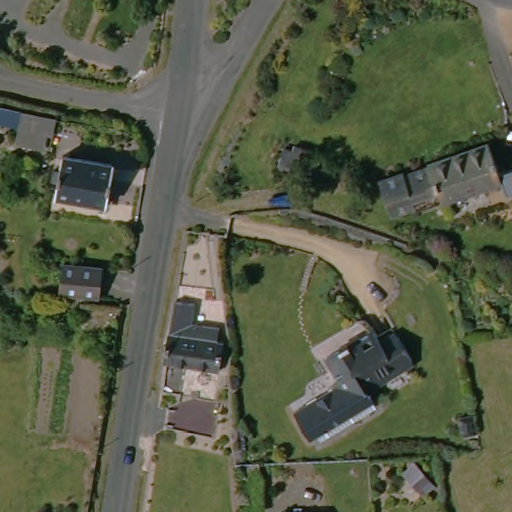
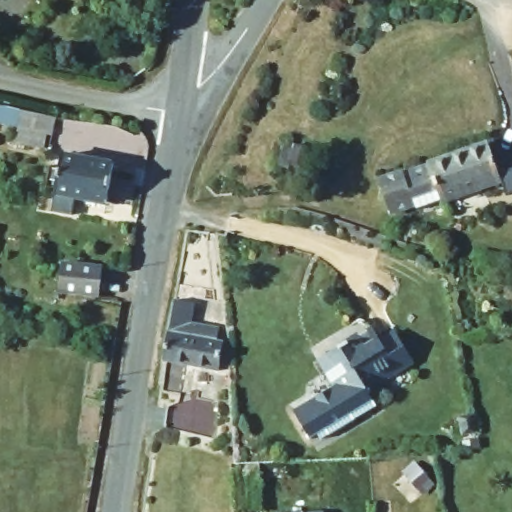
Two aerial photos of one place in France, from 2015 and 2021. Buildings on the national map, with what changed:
unchanged [(56,124),(76,130),(72,149),(47,145),(12,139),(17,110),(51,116),(57,117),(56,124)]
unchanged [(499,179),(450,198),(449,196),(438,159),(483,143),(499,179)]
unchanged [(109,166),(97,208),(59,198),(70,155),(109,166)]
unchanged [(449,196),(450,198),(419,210),(416,204),(396,212),(384,179),(438,159),(449,196)]
unchanged [(102,265),(101,298),(61,296),(64,263),(102,265)]
unchanged [(196,304),(193,324),(222,328),(221,340),(227,341),(223,370),(167,362),(175,300),(196,304)]
unchanged [(365,384),(376,401),(323,437),(320,433),(313,438),(295,410),(306,402),(333,384),(332,382),(340,376),(325,354),(346,340),(349,345),(358,340),(355,336),(370,326),(379,339),(394,329),(410,354),(365,384)]
unchanged [(251,512),(249,488),(263,487),(265,512),(251,512)]
unchanged [(271,512),(311,504),(313,512),(271,512)]

